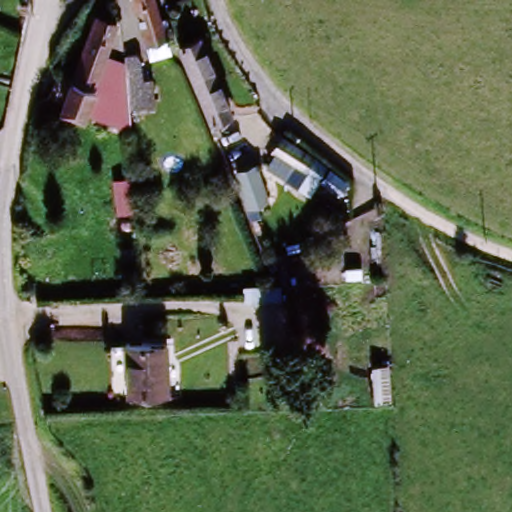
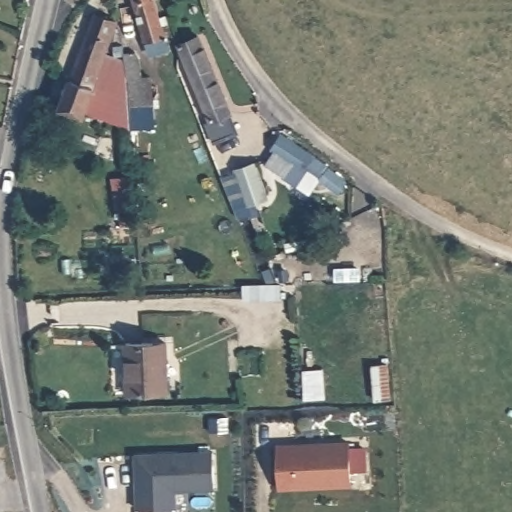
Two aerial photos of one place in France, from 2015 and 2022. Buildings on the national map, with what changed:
unchanged [(173,51),(150,58),(145,46),(134,0),(162,0),(170,36),(173,51)]
unchanged [(121,23),(108,56),(127,62),(126,54),(141,55),(146,80),(157,80),(160,115),(131,119),(132,132),(88,116),(85,120),(59,111),(71,80),(95,15),(121,23)]
unchanged [(203,37),(236,118),(212,128),(178,47),(203,37)]
unchanged [(283,137),(355,185),(333,212),(264,165),(283,137)]
unchanged [(254,219),(238,172),(230,152),(248,146),(253,164),(258,164),(276,212),(254,219)]
unchanged [(120,169),(126,166),(135,205),(115,211),(107,176),(120,169)]
unchanged [(165,397),(125,397),(125,347),(165,347),(165,397)]
unchanged [(391,368),(393,405),(374,406),(375,370),(391,368)]
new [(350,445),(352,487),(281,492),(279,449),(350,445)]
new [(138,456),(215,452),(216,488),(175,490),(176,510),(140,511),(138,480),(143,480),(143,472),(138,473),(138,456)]

